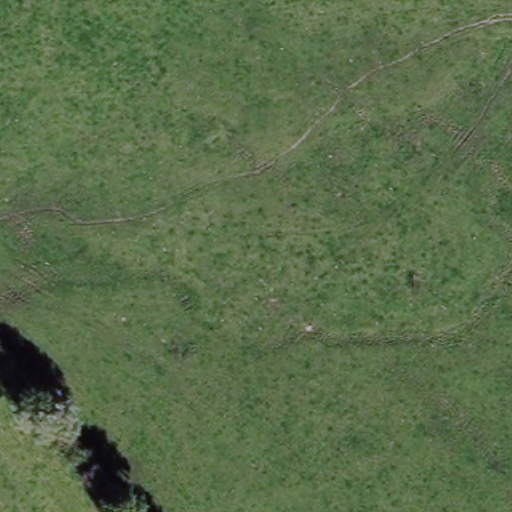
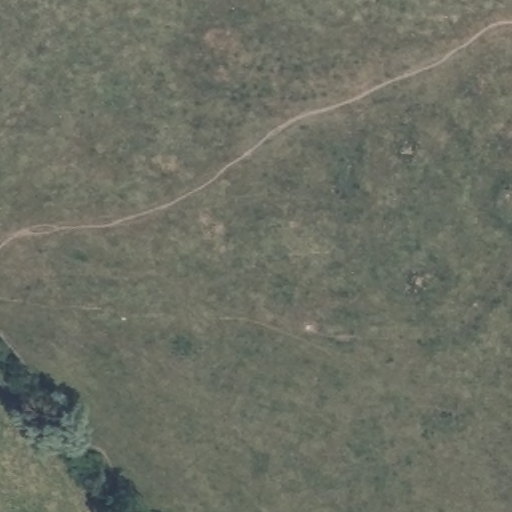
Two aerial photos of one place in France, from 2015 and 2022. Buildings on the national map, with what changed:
[]

